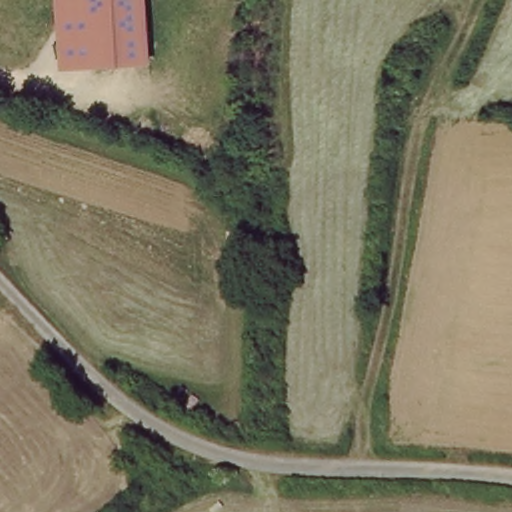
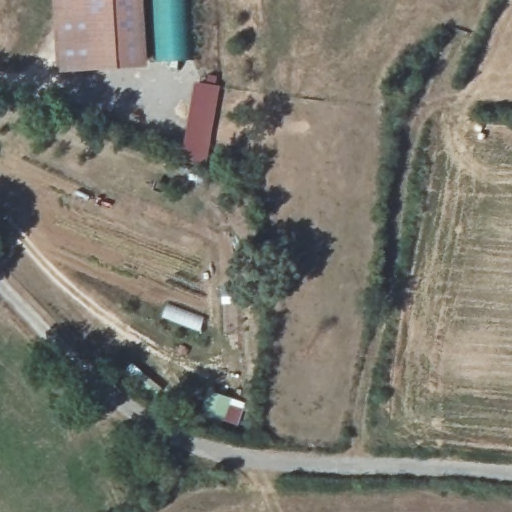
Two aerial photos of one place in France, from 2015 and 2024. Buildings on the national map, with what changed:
unchanged [(58,71),(52,0),(142,0),(147,66),(58,71)]
new [(154,0),(188,0),(191,63),(153,63),(154,0)]
new [(221,87),(210,142),(184,137),(194,82),(221,87)]

